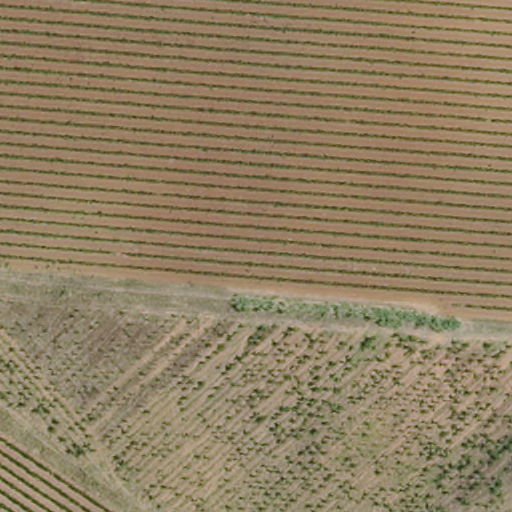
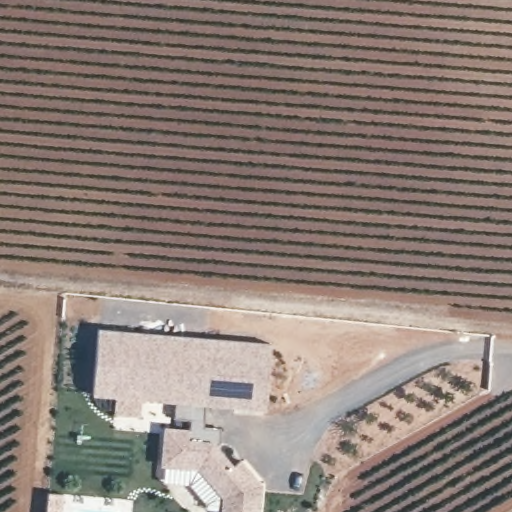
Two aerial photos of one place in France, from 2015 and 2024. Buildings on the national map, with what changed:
new [(205,405),(203,427),(218,428),(216,446),(233,466),(240,458),(262,484),(260,512),(221,512),(222,496),(196,468),(159,467),(162,426),(189,429),(191,420),(174,417),(176,402),(141,400),(140,417),(111,415),(113,398),(93,397),(98,329),(270,343),(266,411),(205,405)]

